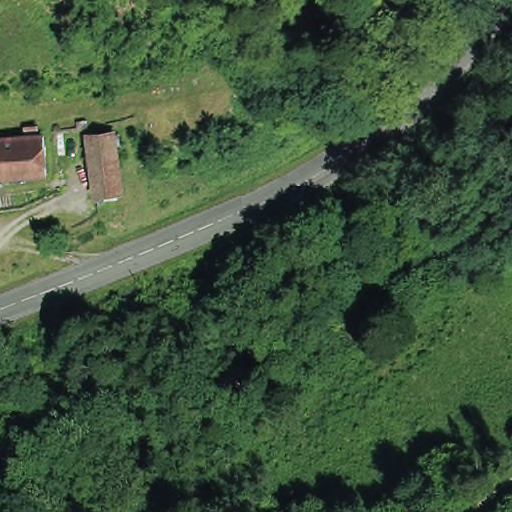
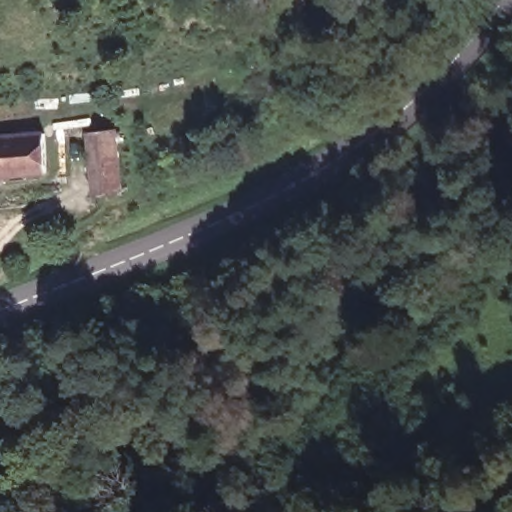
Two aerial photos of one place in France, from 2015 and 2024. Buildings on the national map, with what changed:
unchanged [(0,136),(40,131),(43,169),(0,175),(0,136)]
unchanged [(128,189),(98,193),(88,136),(119,131),(128,189)]

